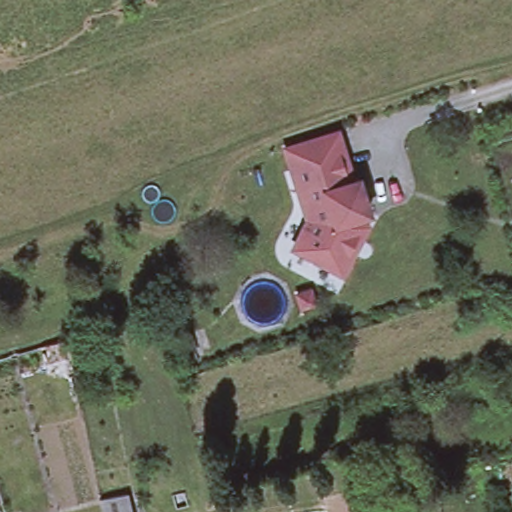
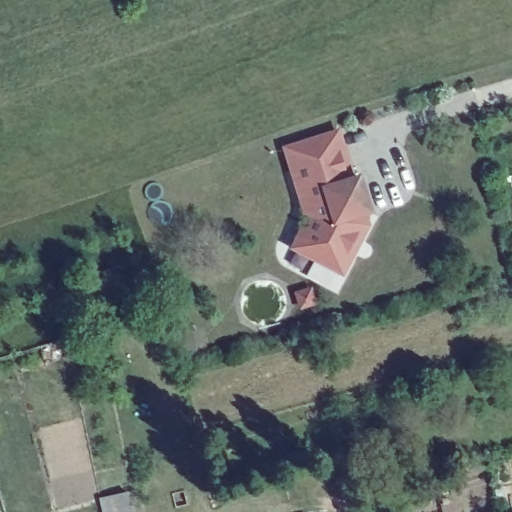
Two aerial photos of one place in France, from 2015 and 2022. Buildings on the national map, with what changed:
unchanged [(288,147),(340,130),(346,150),(294,167),(288,147)]
unchanged [(346,150),(354,178),(361,176),(361,179),(304,197),(294,167),(346,150)]
unchanged [(302,242),(308,232),(305,230),(311,218),(304,197),(361,179),(364,187),(361,189),(364,199),(368,197),(372,210),(366,212),(370,223),(344,272),(318,257),(299,249),(302,242)]
unchanged [(189,332),(194,350),(181,355),(175,337),(189,332)]
unchanged [(65,337),(69,356),(44,362),(39,344),(65,337)]
unchanged [(104,512),(101,498),(123,492),(129,512),(104,512)]

